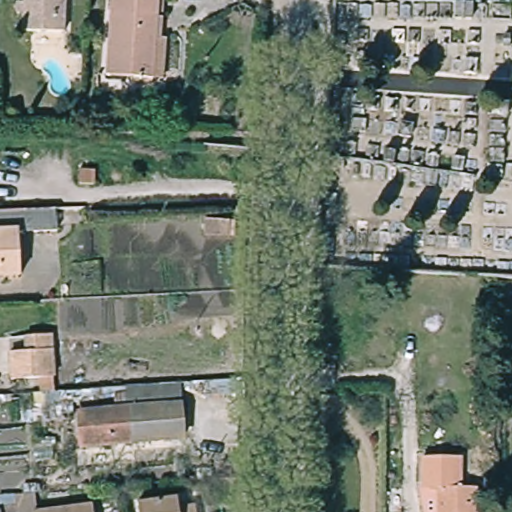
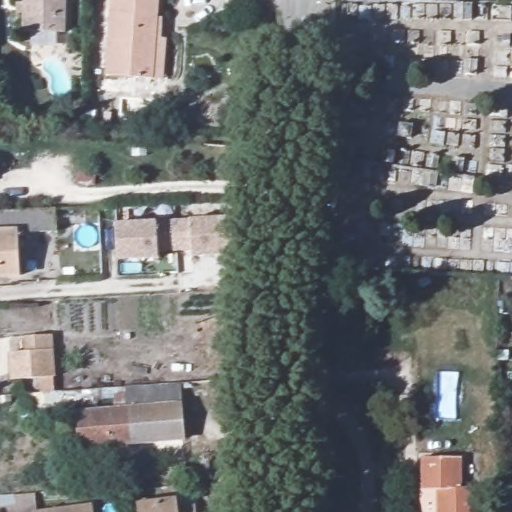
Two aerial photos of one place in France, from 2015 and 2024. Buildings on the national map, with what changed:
unchanged [(65,31),(24,30),(24,0),(65,0),(65,31)]
unchanged [(164,70),(103,67),(106,0),(167,0),(164,70)]
unchanged [(43,204),(43,227),(20,227),(24,270),(0,272),(0,207),(1,206),(43,204)]
new [(116,222),(233,216),(236,254),(191,256),(191,249),(158,250),(158,258),(117,260),(116,222)]
demolished [(213,222),(211,237),(186,236),(186,220),(213,222)]
unchanged [(53,380),(6,382),(5,346),(23,347),(24,333),(48,330),(53,380)]
unchanged [(79,445),(78,411),(178,406),(181,440),(79,445)]
unchanged [(473,512),(437,512),(437,489),(421,489),(421,479),(420,458),(459,458),(458,478),(458,488),(473,488),(473,512)]
unchanged [(177,494),(178,506),(196,505),(196,512),(139,512),(138,496),(177,494)]
unchanged [(92,504),(93,512),(33,512),(33,509),(92,504)]
unchanged [(1,512),(0,512),(0,511),(1,511),(1,512)]

